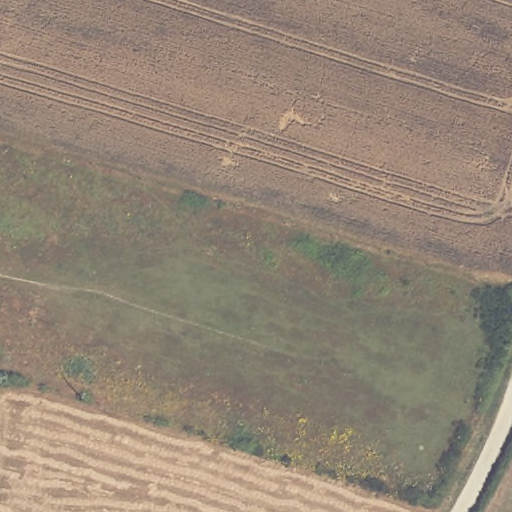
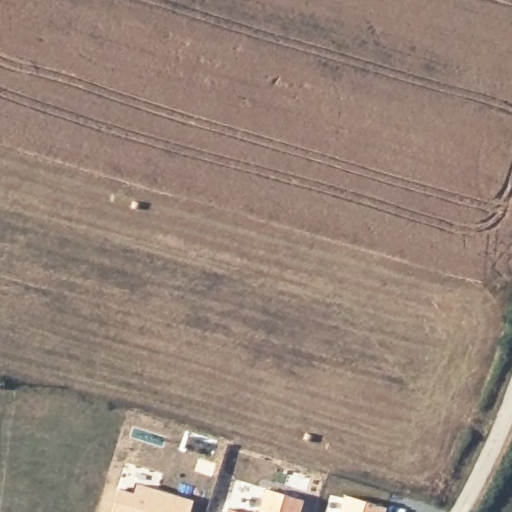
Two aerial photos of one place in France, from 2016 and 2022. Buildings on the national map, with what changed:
new [(135,492),(137,483),(195,500),(191,512),(112,512),(119,488),(135,492)]
new [(305,500),(301,512),(260,512),(267,488),(305,500)]
new [(242,512),(226,512),(227,508),(242,512)]

